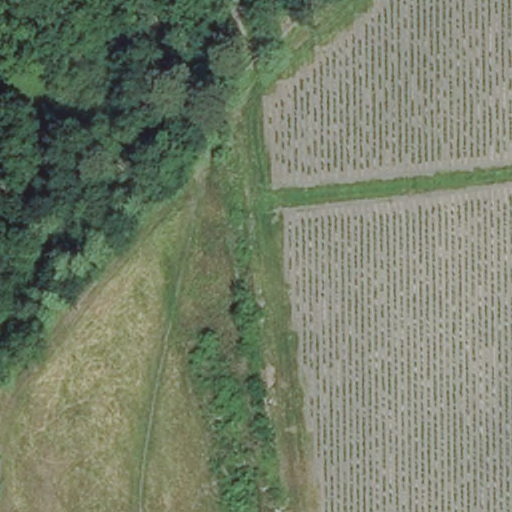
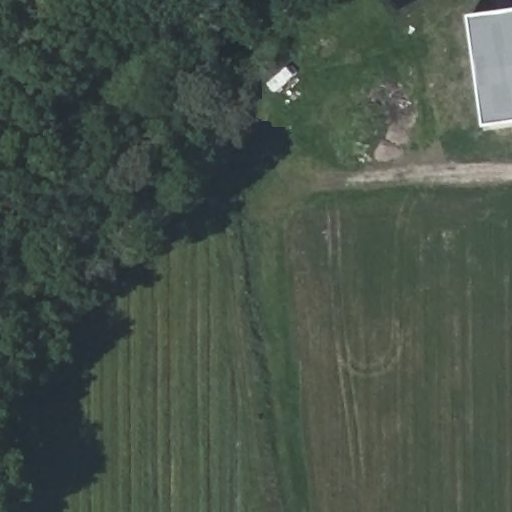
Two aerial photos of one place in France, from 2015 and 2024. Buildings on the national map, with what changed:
new [(470,16),(512,12),(512,125),(483,129),(470,16)]

